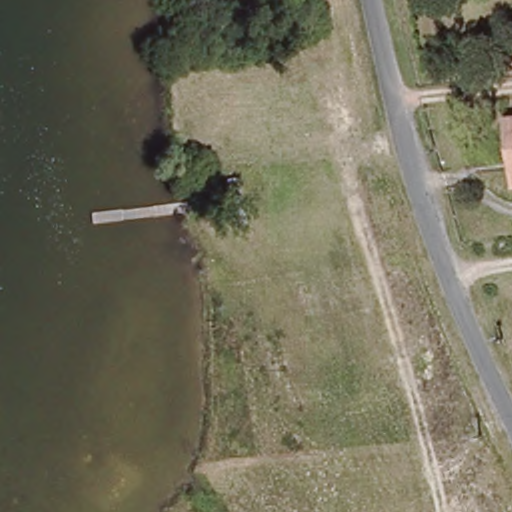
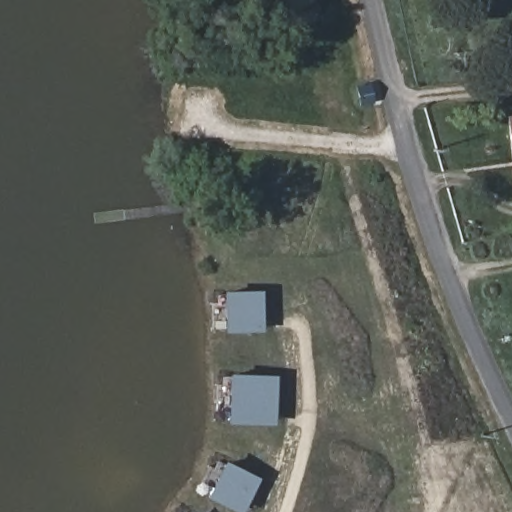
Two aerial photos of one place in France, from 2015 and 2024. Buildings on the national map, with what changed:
unchanged [(512,137),(510,120),(512,120),(512,138),(512,137)]
new [(206,323),(206,293),(260,294),(259,330),(223,330),(223,323),(206,323)]
new [(275,425),(215,420),(215,404),(218,404),(217,377),(273,375),(275,425)]
new [(233,512),(204,498),(209,488),(199,483),(211,458),(257,481),(242,512),(233,512)]
new [(181,512),(168,512),(174,506),(181,512)]

